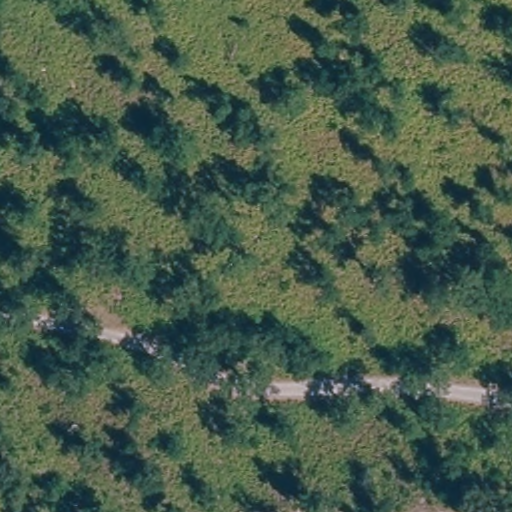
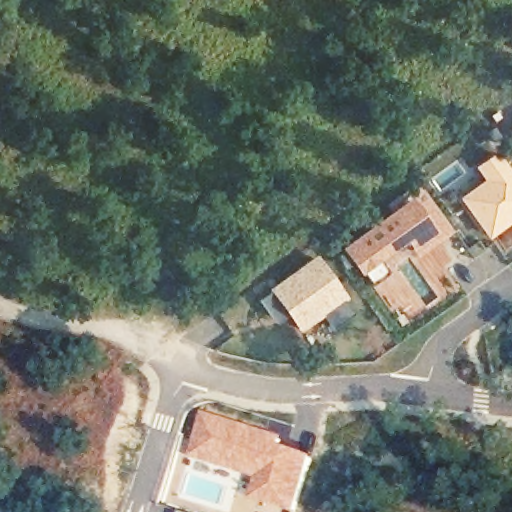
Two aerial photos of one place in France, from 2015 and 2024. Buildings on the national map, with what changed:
new [(512,129),(509,126),(512,124),(512,129)]
new [(473,167),(497,150),(512,170),(512,229),(509,226),(489,241),(457,198),(482,180),(473,167)]
new [(387,212),(420,186),(455,233),(420,257),(417,254),(415,255),(413,252),(411,253),(405,246),(359,277),(338,248),(387,212)]
new [(316,253),(347,299),(297,333),(288,321),(279,328),(257,299),(316,253)]
new [(205,412),(285,437),(282,446),(311,455),(294,512),(290,512),(248,499),(254,480),(190,459),(205,412)]

